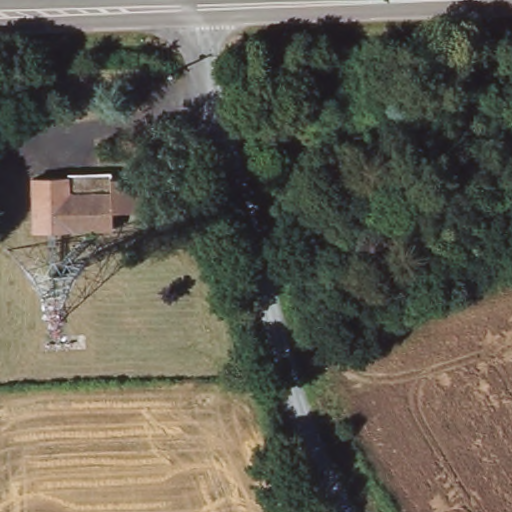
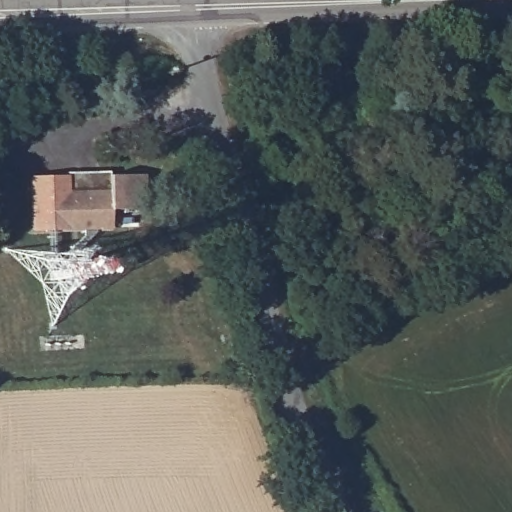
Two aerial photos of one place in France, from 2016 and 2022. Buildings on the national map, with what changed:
unchanged [(141,169),(144,204),(110,207),(111,224),(31,232),(26,179),(141,169)]

